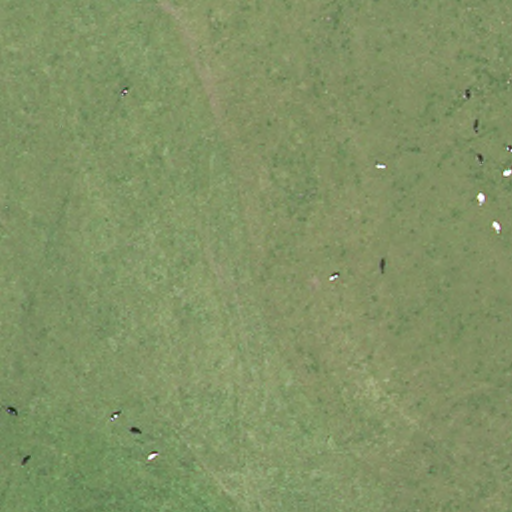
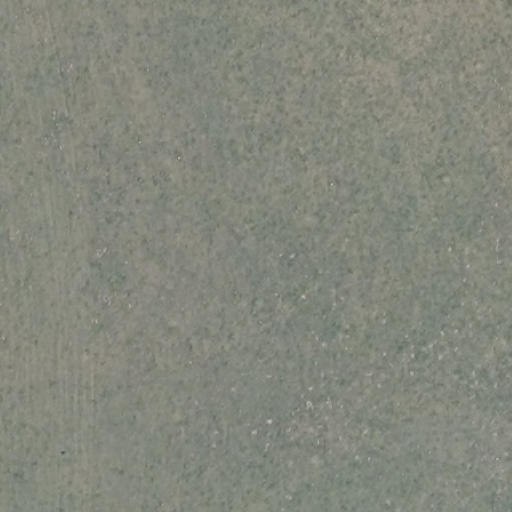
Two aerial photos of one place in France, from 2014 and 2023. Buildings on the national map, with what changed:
[]

